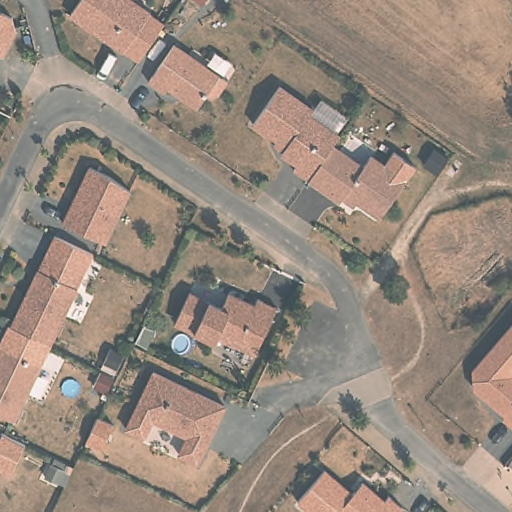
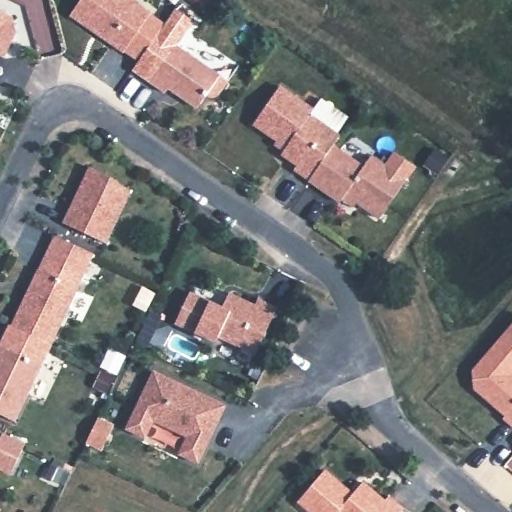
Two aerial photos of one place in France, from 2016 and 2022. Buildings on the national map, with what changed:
unchanged [(124,51),(70,14),(80,0),(132,0),(151,13),(150,14),(164,24),(138,61),(124,51)]
unchanged [(12,17),(17,31),(4,56),(0,55),(0,11),(12,17)]
unchanged [(174,44),(227,81),(220,93),(217,95),(210,96),(206,95),(197,108),(167,87),(165,92),(149,81),(174,44)]
unchanged [(280,81),(313,104),(310,109),(340,130),(332,140),(308,175),(293,165),(297,160),(281,149),(286,142),(253,119),(280,81)]
unchanged [(332,140),(363,161),(371,150),(406,175),(380,213),(346,189),(340,197),(308,175),(332,140)]
unchanged [(91,166),(109,174),(131,189),(106,242),(64,222),(91,166)]
unchanged [(46,254),(84,273),(51,343),(27,332),(12,324),(46,254)]
unchanged [(190,291),(222,307),(230,293),(256,304),(258,298),(277,307),(256,353),(219,335),(216,341),(176,322),(190,291)]
unchanged [(512,374),(512,426),(503,418),(506,415),(474,389),(473,371),(512,325),(512,374)]
unchanged [(1,344),(42,364),(15,419),(0,412),(0,345),(1,344)]
unchanged [(155,370),(226,404),(199,462),(180,453),(189,436),(154,419),(146,436),(127,428),(155,370)]
unchanged [(400,512),(312,512),(298,500),(325,469),(352,493),(362,481),(385,500),(389,495),(403,508),(400,512)]

